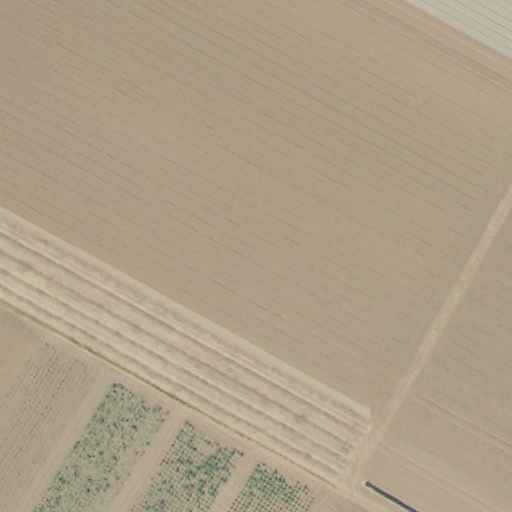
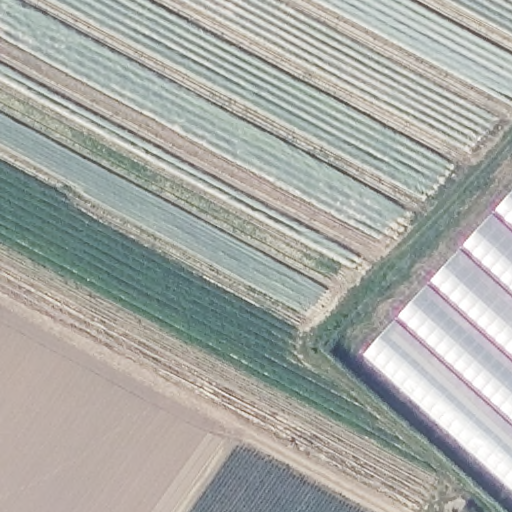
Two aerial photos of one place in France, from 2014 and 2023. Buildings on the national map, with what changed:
new [(512,194),(512,485),(366,353),(512,194)]

